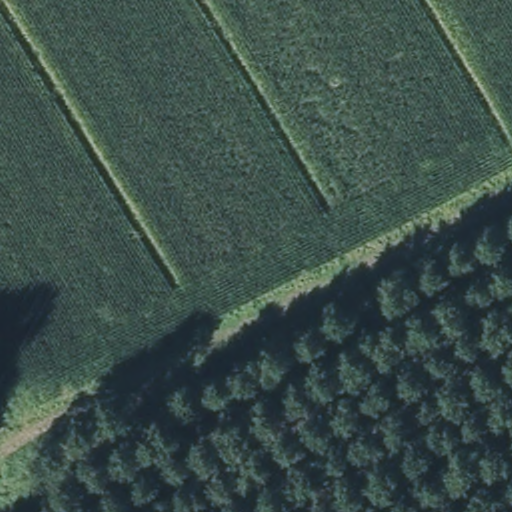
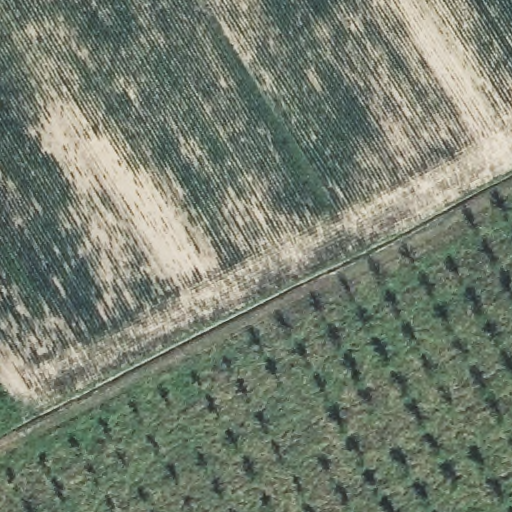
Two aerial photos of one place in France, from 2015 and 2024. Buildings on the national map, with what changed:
[]

